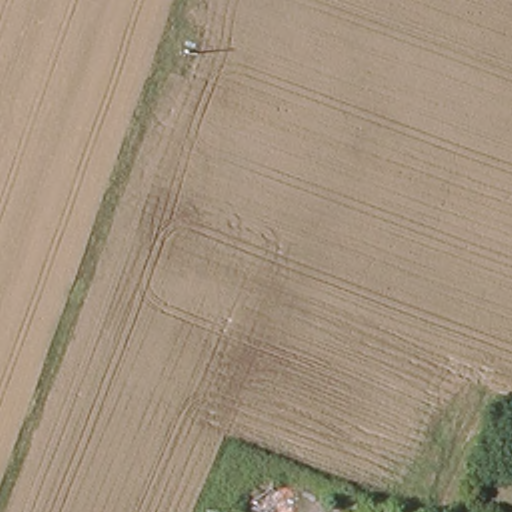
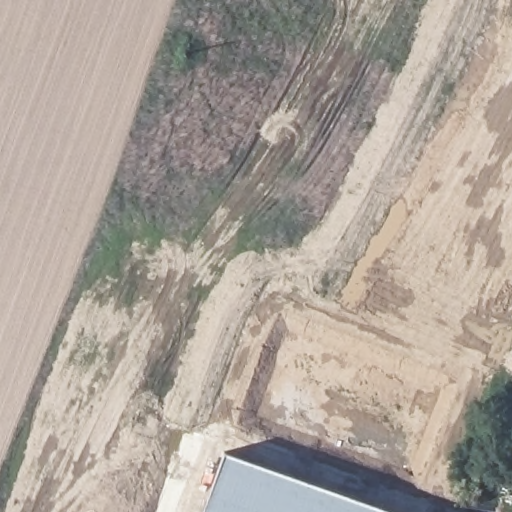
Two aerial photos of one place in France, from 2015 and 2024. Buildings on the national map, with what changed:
new [(392,512),(204,512),(225,452),(392,512)]

